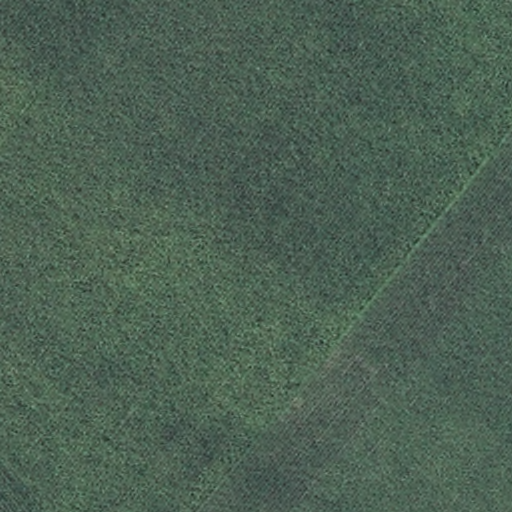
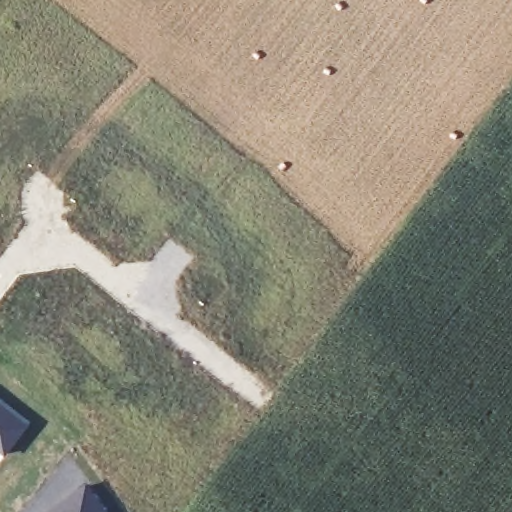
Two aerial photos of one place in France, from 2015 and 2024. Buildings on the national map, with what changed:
new [(32,423),(6,457),(0,452),(0,398),(32,423)]
new [(88,485),(108,512),(50,512),(88,485)]

